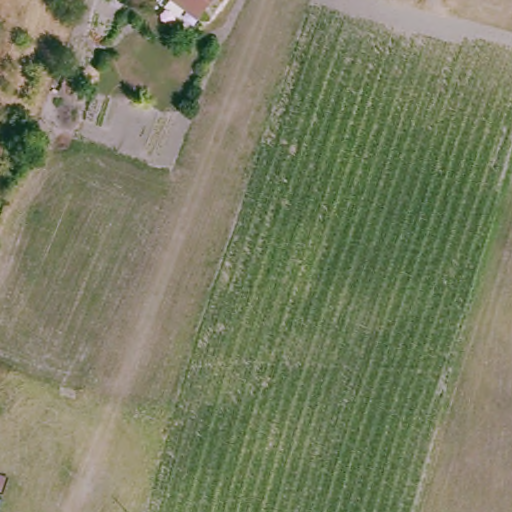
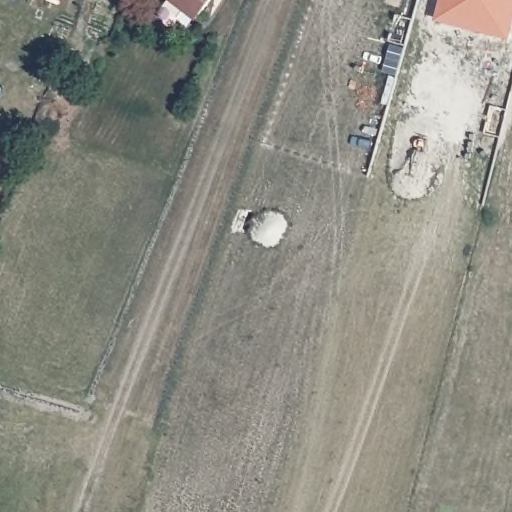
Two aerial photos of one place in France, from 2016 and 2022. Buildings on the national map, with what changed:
unchanged [(197,15),(181,0),(209,0),(197,15)]
new [(439,1),(439,0),(512,0),(512,11),(506,37),(480,30),(435,19),(439,1)]

